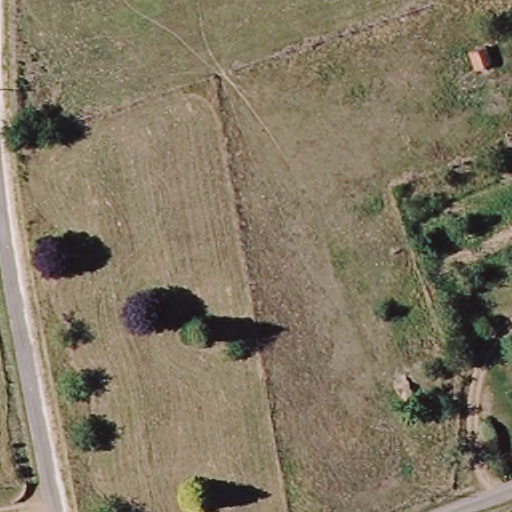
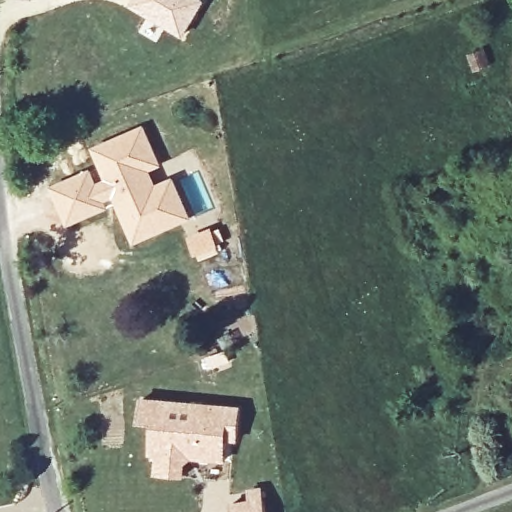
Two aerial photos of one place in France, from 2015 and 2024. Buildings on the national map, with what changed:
new [(205,0),(207,1),(182,40),(129,5),(132,0),(205,0)]
new [(160,165),(150,170),(156,185),(173,178),(192,219),(135,244),(113,198),(106,202),(109,208),(68,225),(51,187),(92,169),(99,182),(105,179),(92,149),(143,126),(160,165)]
new [(140,397),(242,406),(239,443),(228,442),(226,463),(188,461),(186,479),(152,476),(153,463),(148,462),(151,427),(137,425),(140,397)]
new [(248,498),(247,489),(262,486),(267,512),(230,512),(229,503),(248,498)]

